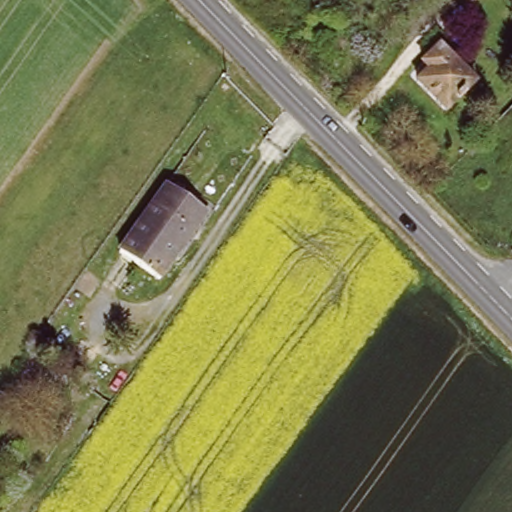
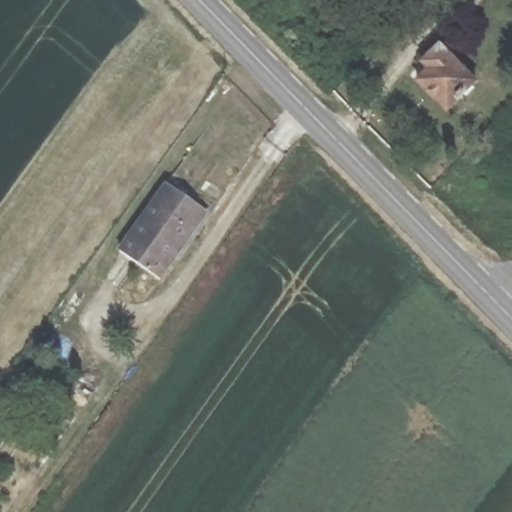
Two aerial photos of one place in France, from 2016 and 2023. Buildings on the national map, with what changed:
unchanged [(438,49),(476,87),(446,117),(418,86),(428,76),(420,67),(438,49)]
unchanged [(166,180),(206,206),(154,280),(116,254),(166,180)]
unchanged [(35,348),(48,356),(31,380),(17,371),(35,348)]

